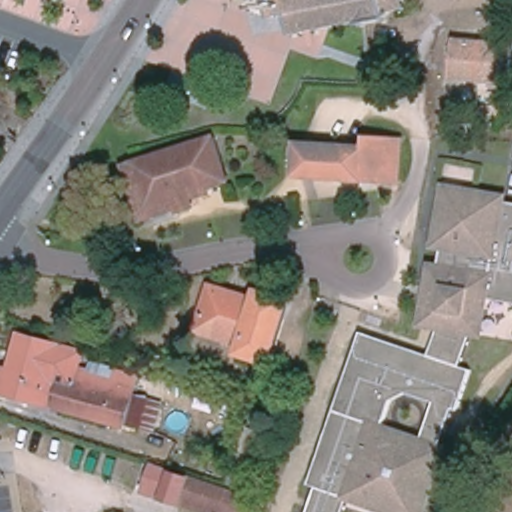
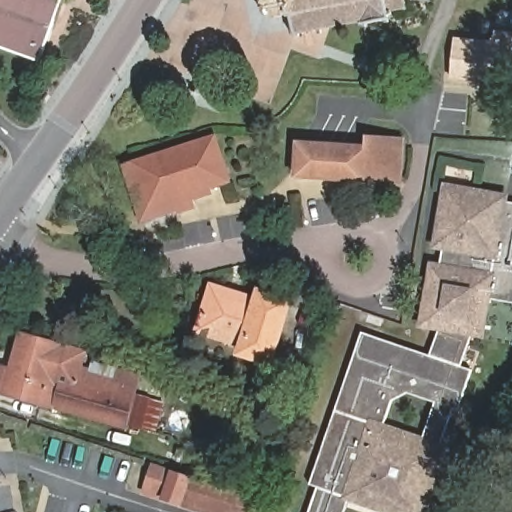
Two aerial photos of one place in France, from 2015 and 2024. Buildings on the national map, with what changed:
new [(0,47),(0,0),(62,0),(39,61),(0,47)]
unchanged [(402,12),(399,13),(398,10),(384,13),(386,22),(383,22),(382,20),(360,24),(361,27),(357,27),(356,22),(338,26),(338,28),(335,29),(334,26),(293,34),(293,37),(290,38),(286,16),(268,19),(264,0),(400,0),(402,12)]
unchanged [(493,32),(512,34),(512,77),(511,83),(459,79),(461,57),(454,56),(455,39),(493,42),(493,32)]
unchanged [(224,181),(205,188),(206,191),(187,198),(189,206),(179,209),(175,197),(144,207),(129,163),(209,137),(224,181)]
unchanged [(383,181),(297,176),(299,144),(366,148),(366,138),(402,141),(401,154),(399,181),(383,181)]
unchanged [(509,202),(512,203),(512,302),(492,298),(484,338),(474,337),(461,367),(471,369),(458,413),(453,412),(443,444),(449,446),(428,512),(377,512),(349,503),(346,512),(309,512),(317,488),(312,486),(363,333),(410,349),(418,327),(429,263),(438,263),(442,252),(435,250),(447,186),(510,195),(509,202)]
unchanged [(258,302),(260,294),(288,303),(270,361),(242,353),(245,344),(200,330),(208,303),(213,305),(218,290),(258,302)]
unchanged [(108,413),(106,418),(0,390),(0,363),(6,365),(16,329),(80,347),(76,361),(86,364),(85,370),(111,377),(114,368),(134,373),(122,417),(108,413)]
unchanged [(134,373),(148,377),(147,382),(161,386),(151,425),(122,417),(134,373)]
unchanged [(249,486),(232,481),(249,425),(266,430),(249,486)]
unchanged [(229,457),(224,473),(209,469),(214,453),(229,457)]
unchanged [(253,512),(221,512),(146,487),(154,462),(257,497),(253,512)]

